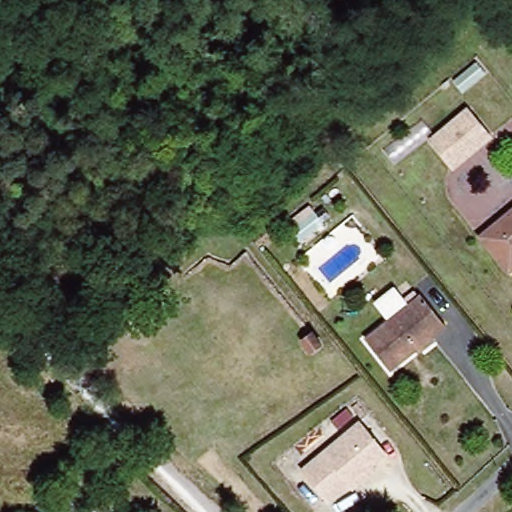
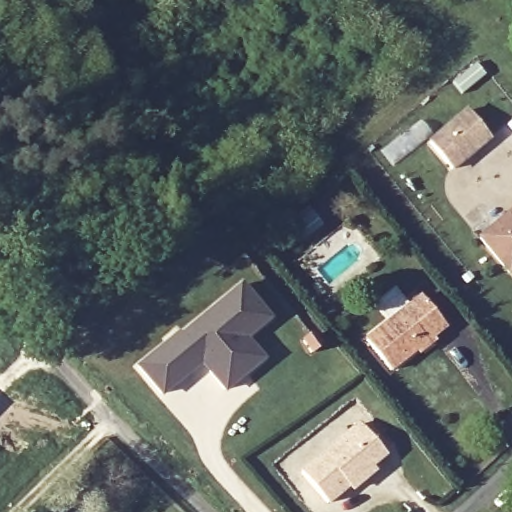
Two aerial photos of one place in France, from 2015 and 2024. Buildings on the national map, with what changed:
unchanged [(450,173),(431,149),(425,141),(465,112),(469,118),(487,142),(450,173)]
unchanged [(512,212),(512,275),(480,238),(512,212)]
new [(245,373),(225,389),(201,362),(162,396),(138,369),(177,335),(180,337),(212,309),(239,285),(267,317),(243,338),(250,345),(261,358),(245,373)]
unchanged [(392,370),(366,340),(402,308),(400,303),(408,296),(412,301),(417,297),(444,329),(433,337),(439,344),(423,357),(417,350),(392,370)]
unchanged [(312,351),(300,338),(310,330),(322,343),(312,351)]
unchanged [(348,482),(327,500),(300,469),(360,420),(385,451),(372,463),(375,467),(361,477),(352,486),(348,482)]

